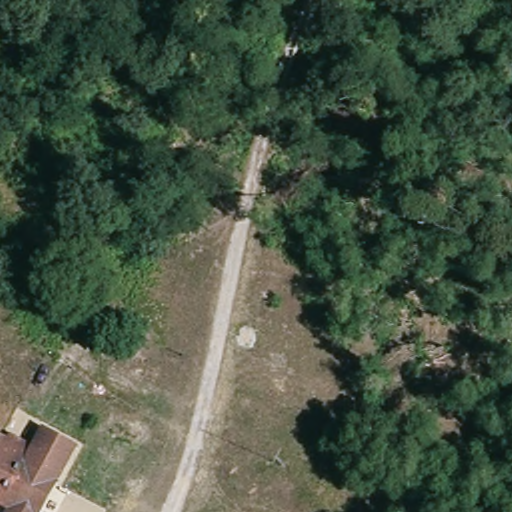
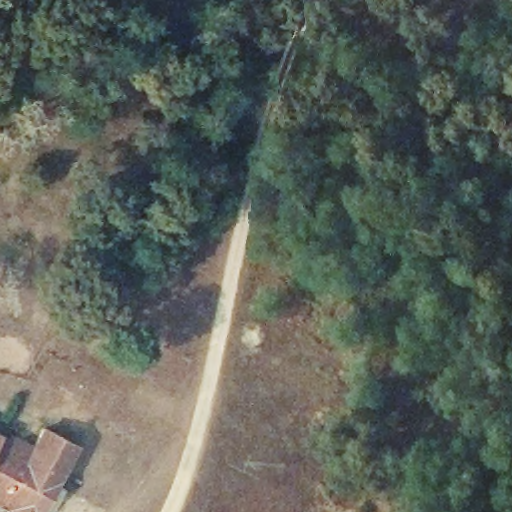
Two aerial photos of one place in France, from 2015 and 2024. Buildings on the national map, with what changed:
unchanged [(41,417),(82,433),(54,493),(0,468),(0,431),(28,442),(41,417)]
unchanged [(45,512),(9,512),(10,508),(0,504),(0,468),(54,493),(45,512)]

